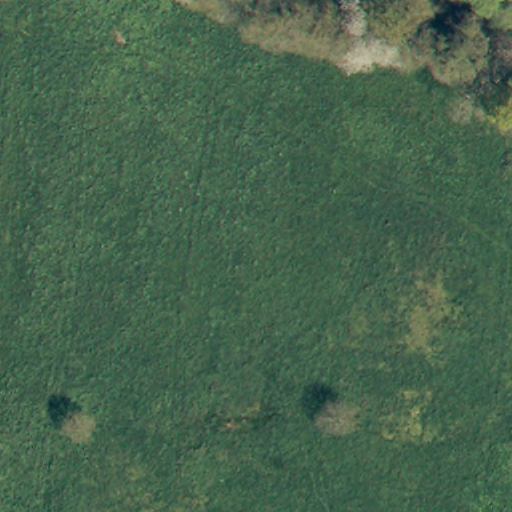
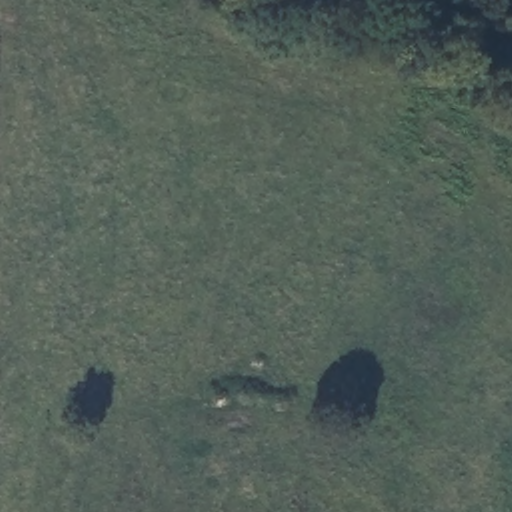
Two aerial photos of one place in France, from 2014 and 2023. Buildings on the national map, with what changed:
[]

